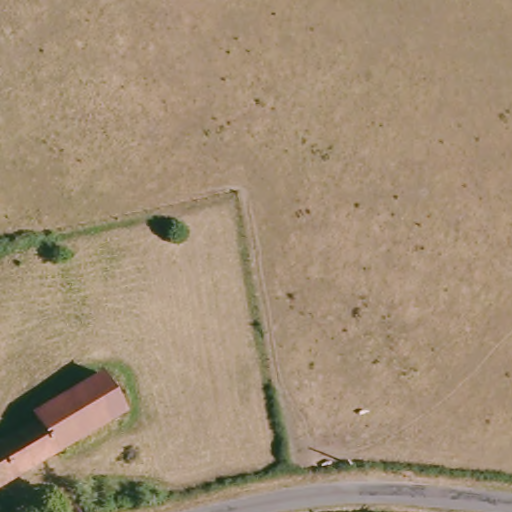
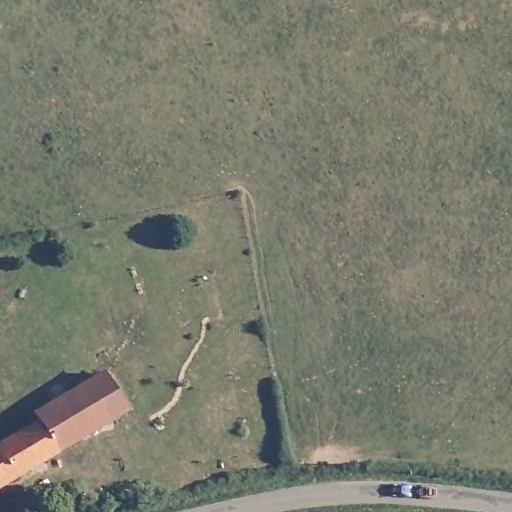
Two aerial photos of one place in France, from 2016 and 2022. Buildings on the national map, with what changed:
unchanged [(27,429),(18,413),(43,397),(50,407),(107,372),(128,412),(0,487),(0,445),(27,429)]

